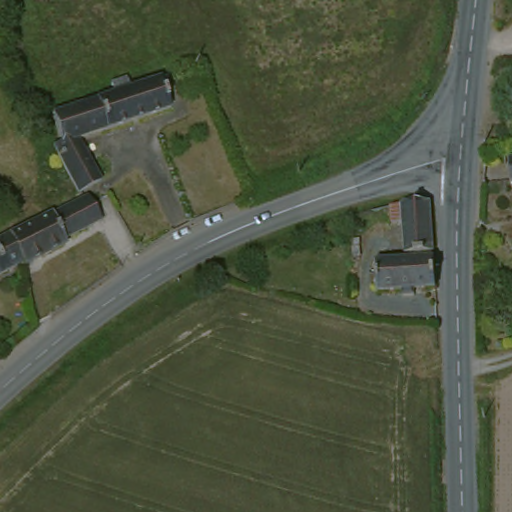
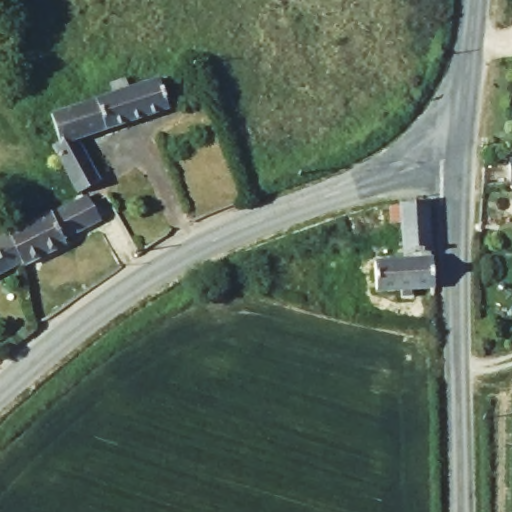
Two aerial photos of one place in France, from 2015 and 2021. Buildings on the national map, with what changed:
unchanged [(64,139),(54,110),(113,89),(109,77),(124,71),(129,84),(159,73),(170,103),(89,132),(78,137),(99,182),(73,194),(53,149),(51,145),(64,139)]
unchanged [(49,213),(75,199),(79,197),(90,219),(59,235),(61,238),(16,265),(1,235),(45,208),(49,213)]
unchanged [(408,224),(399,223),(398,210),(398,207),(433,205),(434,215),(435,255),(412,254),(408,224)]
unchanged [(16,265),(0,274),(0,235),(1,235),(16,265)]
unchanged [(384,258),(435,265),(437,292),(384,285),(384,258)]

